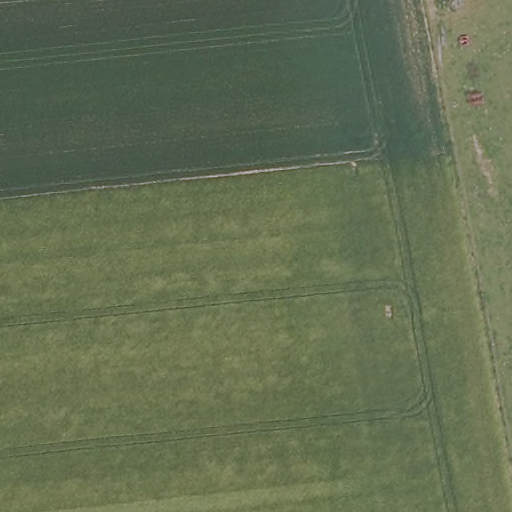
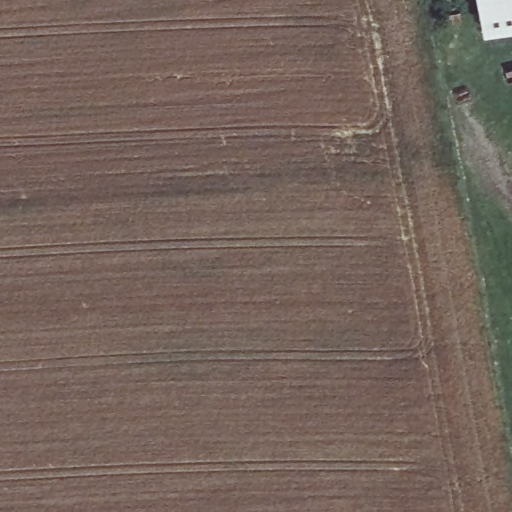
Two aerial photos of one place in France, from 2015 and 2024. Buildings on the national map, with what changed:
new [(487,33),(481,0),(512,0),(512,28),(487,33)]

